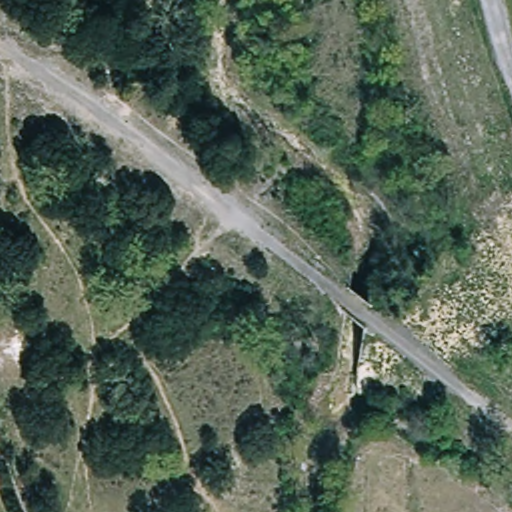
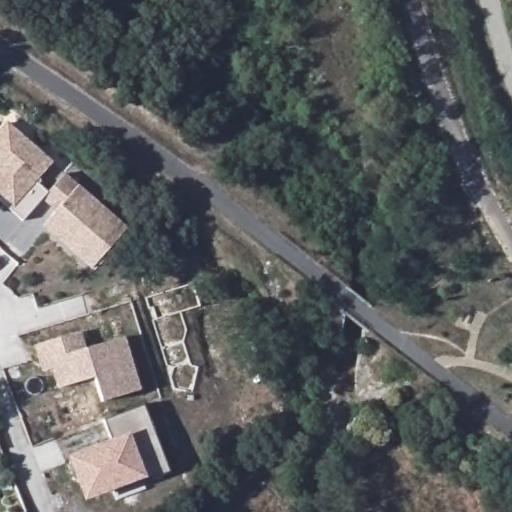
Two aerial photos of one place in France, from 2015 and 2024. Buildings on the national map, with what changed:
new [(13,205),(0,194),(0,133),(8,124),(52,162),(35,182),(48,193),(24,222),(10,210),(13,205)]
new [(91,269),(42,226),(55,211),(41,200),(64,172),(81,186),(128,227),(91,269)]
new [(141,390),(102,403),(94,377),(56,389),(51,369),(42,371),(34,345),(82,331),(86,348),(125,336),(141,390)]
new [(143,405),(169,472),(114,492),(113,490),(85,501),(67,456),(111,439),(104,420),(143,405)]

